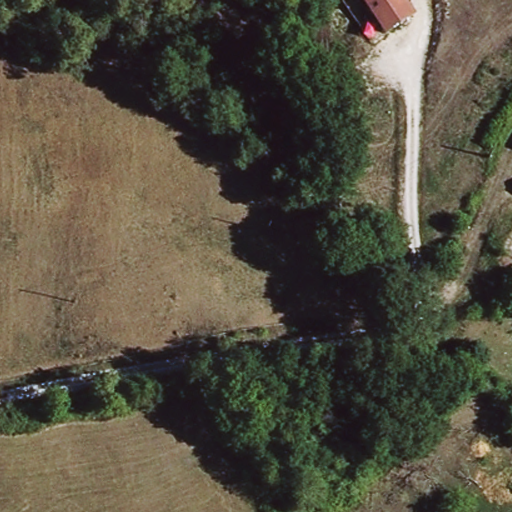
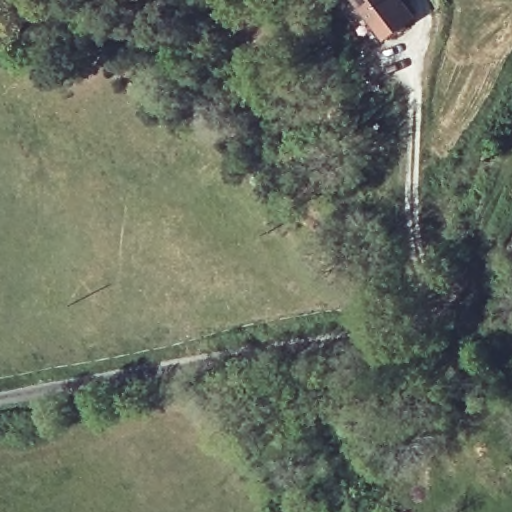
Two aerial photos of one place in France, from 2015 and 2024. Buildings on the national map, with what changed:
unchanged [(385,40),(356,0),(403,0),(416,18),(385,40)]
unchanged [(303,134),(306,152),(288,155),(285,137),(303,134)]

